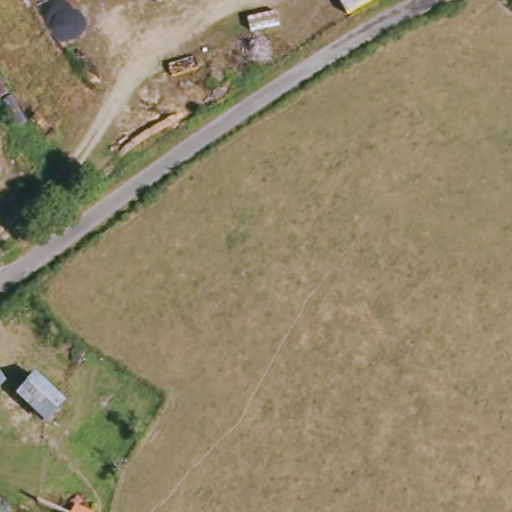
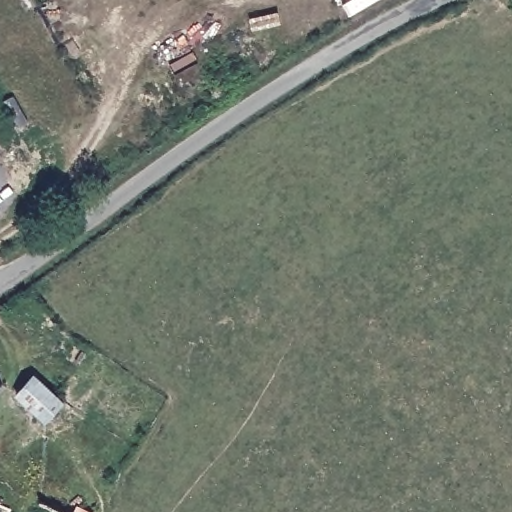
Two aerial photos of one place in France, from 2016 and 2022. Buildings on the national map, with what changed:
unchanged [(7,390),(0,389),(0,362),(19,379),(7,390)]
unchanged [(67,398),(47,421),(22,399),(42,377),(67,398)]
unchanged [(77,512),(39,512),(47,497),(77,512)]
unchanged [(95,512),(78,512),(82,504),(95,512)]

